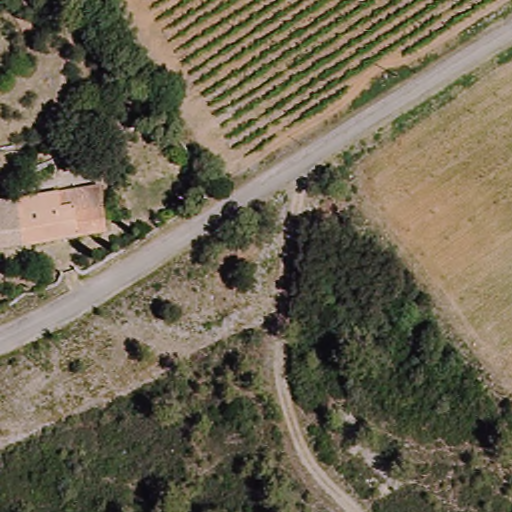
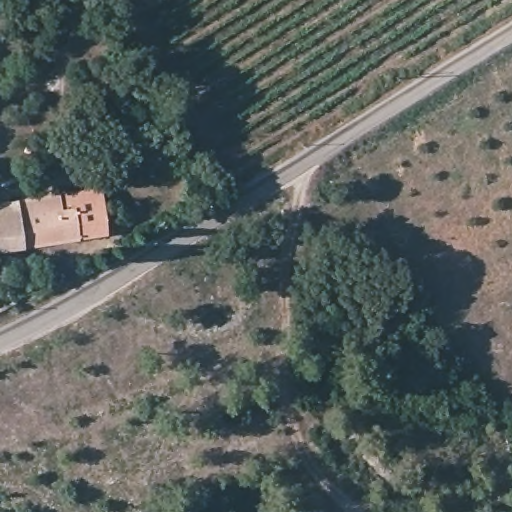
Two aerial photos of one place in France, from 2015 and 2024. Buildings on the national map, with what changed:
unchanged [(102,234),(20,246),(13,199),(101,187),(108,233),(102,234)]

